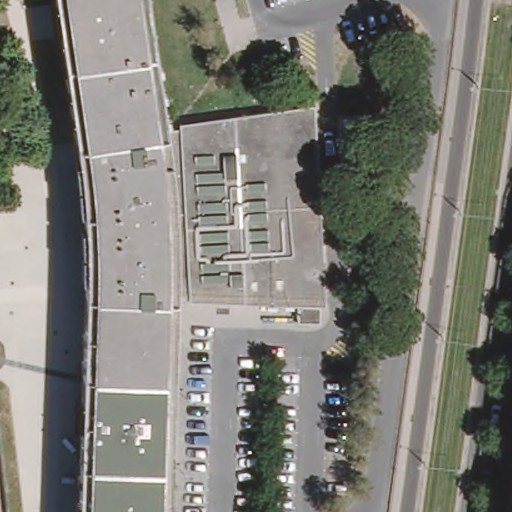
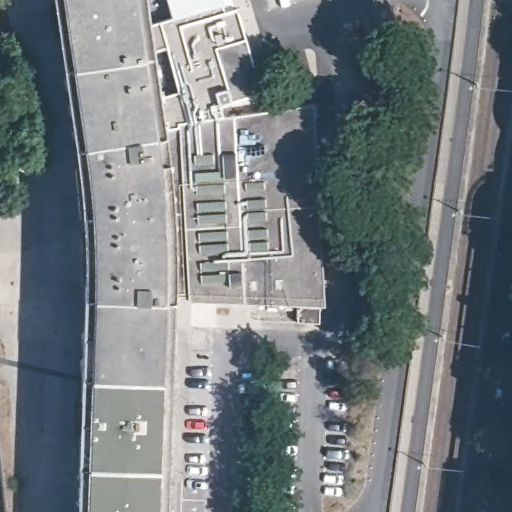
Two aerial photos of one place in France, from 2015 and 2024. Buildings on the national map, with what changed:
unchanged [(93,242),(93,232),(92,220),(90,203),(60,0),(152,0),(170,125),(180,291),(176,433),(188,433),(191,442),(196,442),(195,453),(190,453),(186,462),(175,461),(173,512),(85,512),(93,242)]
new [(260,92),(220,102),(224,113),(183,120),(184,122),(170,125),(155,22),(163,21),(174,17),(169,0),(235,0),(237,7),(260,92)]
unchanged [(302,315),(302,297),(194,296),(193,292),(180,291),(170,125),(184,122),(183,120),(224,113),(320,97),(330,298),(325,298),(325,315),(302,315)]
unchanged [(7,512),(0,512),(0,457),(7,512)]

